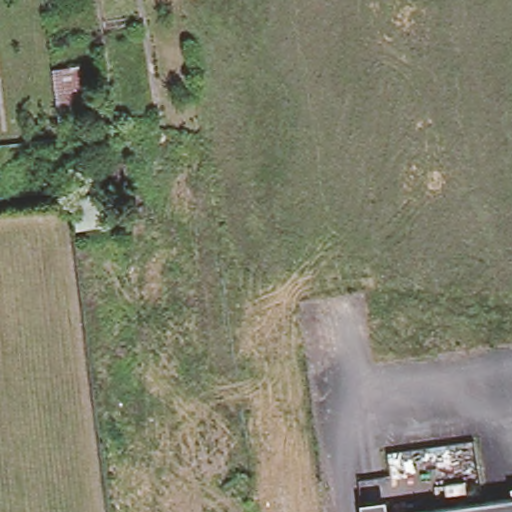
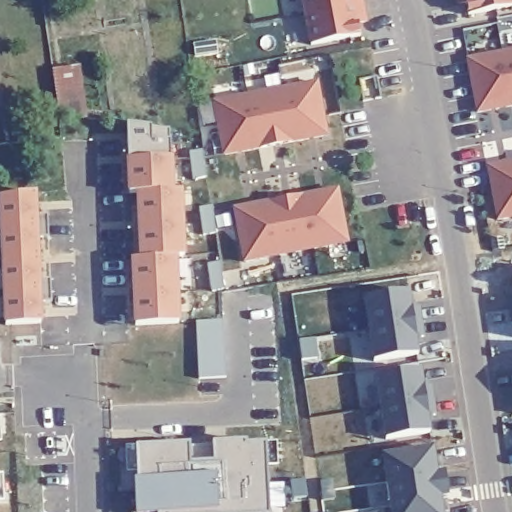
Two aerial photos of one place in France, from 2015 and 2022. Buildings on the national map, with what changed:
new [(368,24),(359,25),(361,37),(310,47),(301,0),(363,0),(368,24)]
new [(467,16),(465,5),(456,7),(454,0),(512,0),(512,7),(467,16)]
new [(466,59),(512,50),(512,107),(477,114),(466,59)]
new [(329,136),(223,157),(212,100),(317,80),(329,136)]
new [(170,129),(171,191),(182,190),(183,256),(176,256),(179,322),(135,325),(133,260),(142,259),(138,192),(130,192),(128,124),(170,129)]
new [(486,166),(512,161),(512,219),(497,221),(486,166)]
new [(349,244),(244,262),(233,207),(339,187),(349,244)]
new [(36,190),(35,215),(48,215),(49,237),(38,238),(39,280),(52,279),(53,301),(39,302),(40,323),(6,324),(1,196),(36,190)]
new [(512,275),(512,283),(511,275),(512,275)]
new [(506,288),(512,288),(512,325),(510,325),(506,288)]
new [(410,291),(411,302),(417,302),(417,308),(422,306),(426,338),(421,338),(422,345),(418,343),(420,357),(372,363),(363,299),(410,291)]
new [(223,320),(226,376),(200,377),(196,322),(223,320)]
new [(423,380),(428,380),(429,386),(432,385),(438,416),(432,417),(433,424),(429,422),(431,434),(385,441),(375,377),(421,370),(423,380)]
new [(278,441),(281,512),(134,512),(138,511),(137,480),(125,481),(124,445),(137,444),(137,433),(172,433),(173,438),(263,432),(263,440),(278,441)]
new [(386,512),(378,457),(384,451),(432,444),(437,448),(448,512),(386,512)]
demolished [(423,512),(512,499),(512,512),(423,512)]

